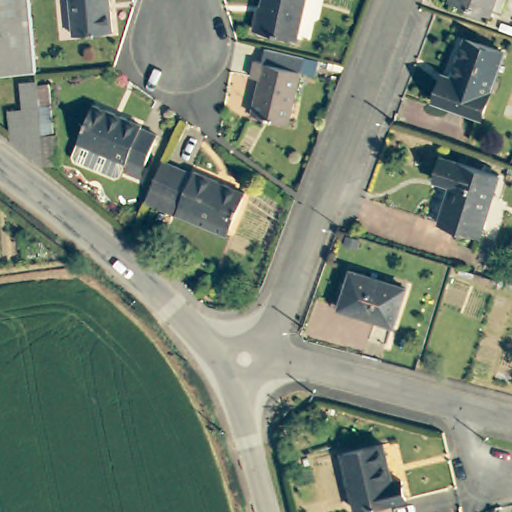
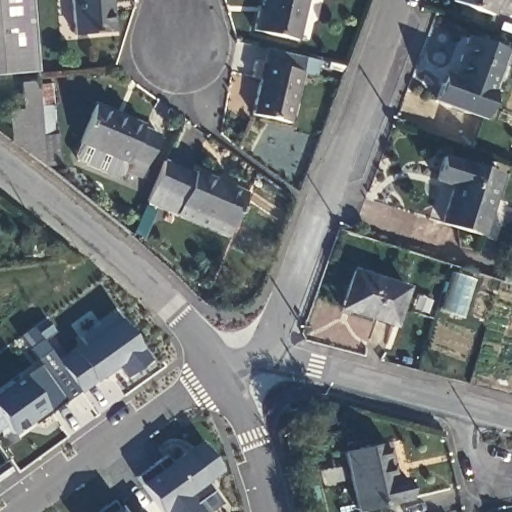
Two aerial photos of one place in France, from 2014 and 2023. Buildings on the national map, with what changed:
unchanged [(0,0),(9,0),(0,27),(0,0)]
unchanged [(0,27),(9,0),(30,0),(35,71),(0,75),(0,27)]
unchanged [(110,0),(113,32),(74,36),(70,0),(110,0)]
unchanged [(260,13),(263,0),(306,0),(297,40),(253,31),(257,12),(260,13)]
unchanged [(496,0),(490,15),(450,1),(451,0),(496,0)]
unchanged [(452,76),(466,38),(505,52),(482,117),(434,101),(441,82),(444,73),(452,76)]
unchanged [(316,70),(320,71),(317,85),(302,82),(290,133),(251,124),(258,89),(250,87),(253,70),(263,73),(266,59),(305,68),(316,70)]
unchanged [(36,82),(37,85),(43,166),(11,141),(8,111),(23,110),(21,83),(36,82)]
unchanged [(48,84),(52,135),(55,134),(58,165),(43,166),(37,85),(48,84)]
unchanged [(78,142),(93,105),(142,125),(140,128),(158,135),(145,167),(127,159),(126,162),(78,142)]
unchanged [(452,185),(435,179),(442,156),(500,175),(480,235),(440,222),(452,185)]
unchanged [(145,201),(162,161),(193,174),(194,171),(245,193),(230,229),(227,236),(176,214),(145,201)]
unchanged [(393,325),(340,307),(352,271),(405,288),(393,325)]
new [(59,363),(85,344),(80,337),(115,312),(149,359),(126,376),(117,363),(79,391),(59,363)]
new [(32,420),(13,434),(0,416),(0,392),(38,365),(64,400),(35,424),(32,420)]
new [(207,483),(212,491),(196,503),(204,512),(162,512),(136,476),(164,455),(169,462),(199,440),(222,471),(207,483)]
unchanged [(343,453),(384,443),(393,481),(402,479),(407,499),(357,510),(343,453)]
new [(95,511),(112,499),(122,512),(95,512),(95,511)]
new [(141,509),(144,512),(137,512),(141,509)]

